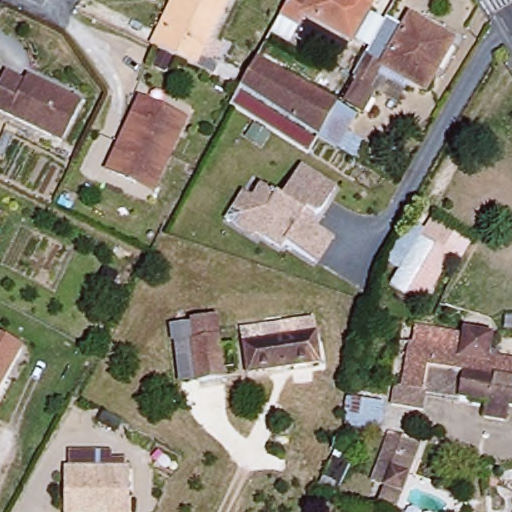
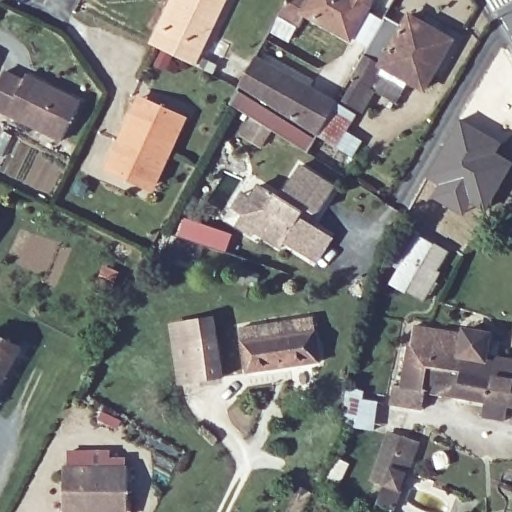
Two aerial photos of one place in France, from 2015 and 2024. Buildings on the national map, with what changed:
unchanged [(173,0),(230,0),(203,57),(223,67),(218,77),(158,47),(151,43),(173,0)]
unchanged [(376,0),(377,7),(357,41),(313,15),(306,27),(285,15),(294,0),(376,0)]
unchanged [(393,20),(405,27),(412,16),(458,43),(429,90),(399,71),(385,94),(358,77),(393,20)]
unchanged [(261,62),(339,109),(324,136),(247,89),(261,62)]
unchanged [(21,80),(23,77),(78,101),(63,139),(0,110),(0,86),(5,74),(21,80)]
unchanged [(136,186),(106,171),(137,105),(140,98),(158,107),(184,121),(155,187),(152,193),(136,186)]
new [(504,142),(498,152),(512,160),(512,166),(485,211),(473,205),(465,216),(429,199),(435,185),(425,180),(460,117),(504,142)]
unchanged [(251,197),(256,188),(266,192),(269,190),(279,197),(302,167),(336,186),(323,209),(345,225),(318,265),(283,243),(281,249),(221,220),(241,192),(251,197)]
unchanged [(417,236),(435,245),(406,294),(389,283),(417,236)]
unchanged [(314,323),(319,352),(249,365),(245,335),(314,323)]
unchanged [(217,327),(222,364),(185,371),(178,332),(217,327)]
unchanged [(0,382),(0,340),(17,349),(0,382)]
unchanged [(512,407),(458,398),(461,377),(426,371),(423,392),(401,388),(408,341),(512,360),(512,407)]
new [(346,394),(381,406),(372,434),(336,422),(346,394)]
unchanged [(418,446),(396,512),(390,512),(374,506),(383,482),(369,477),(386,433),(418,446)]
unchanged [(60,467),(126,465),(128,512),(61,512),(60,467)]

